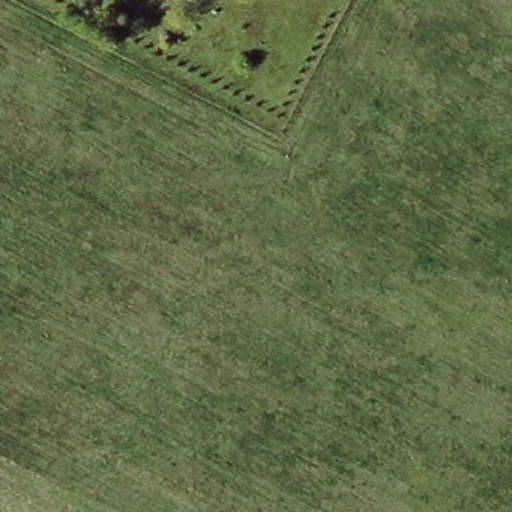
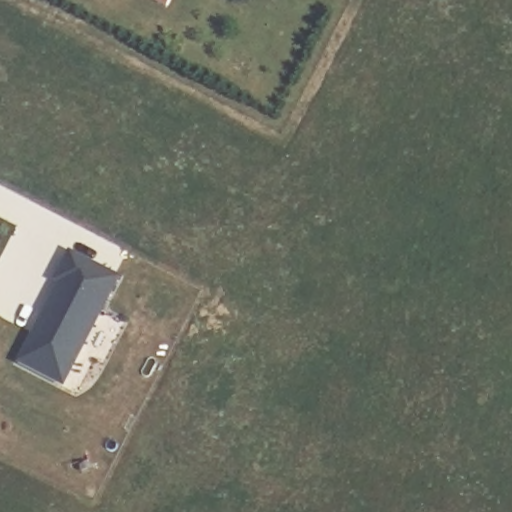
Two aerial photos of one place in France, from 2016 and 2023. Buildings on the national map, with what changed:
new [(60,283),(55,281),(69,254),(118,279),(63,386),(18,362),(60,283)]

